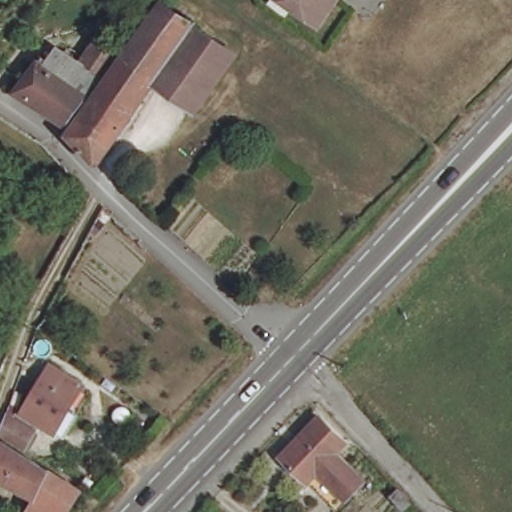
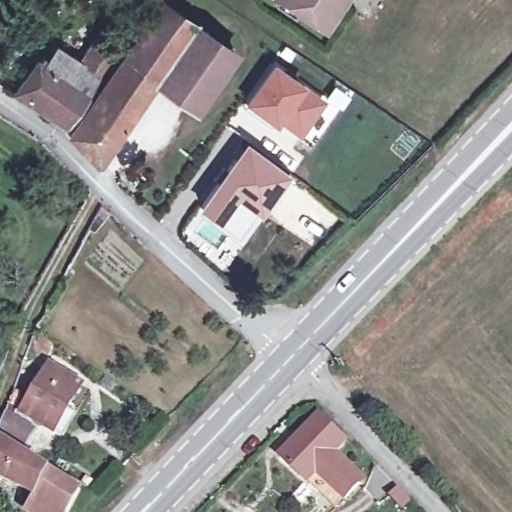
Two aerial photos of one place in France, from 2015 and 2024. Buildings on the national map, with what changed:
unchanged [(145,2),(143,0),(158,0),(153,7),(147,16),(140,10),(145,2)]
unchanged [(334,0),(318,22),(286,0),(334,0)]
unchanged [(92,165),(66,138),(160,7),(233,57),(195,113),(153,85),(97,165),(92,165)]
unchanged [(13,96),(35,67),(45,73),(59,53),(78,66),(95,44),(116,59),(104,75),(100,81),(66,129),(13,96)]
new [(327,100),(301,137),(280,119),(275,125),(245,102),(274,62),(327,100)]
new [(286,172),(240,239),(217,223),(220,219),(200,205),(234,159),(242,164),(254,150),(286,172)]
unchanged [(105,221),(97,214),(102,205),(112,214),(105,221)]
unchanged [(62,433),(23,410),(50,365),(80,383),(66,408),(75,413),(62,433)]
unchanged [(323,489),(307,474),(281,449),(320,410),(345,434),(335,445),(363,473),(345,492),(335,502),(323,489)]
unchanged [(33,429),(23,446),(0,431),(0,426),(5,413),(33,429)]
unchanged [(27,509),(36,492),(0,475),(0,444),(2,439),(80,488),(68,512),(31,512),(27,509)]
unchanged [(399,487),(411,500),(405,507),(391,494),(399,487)]

